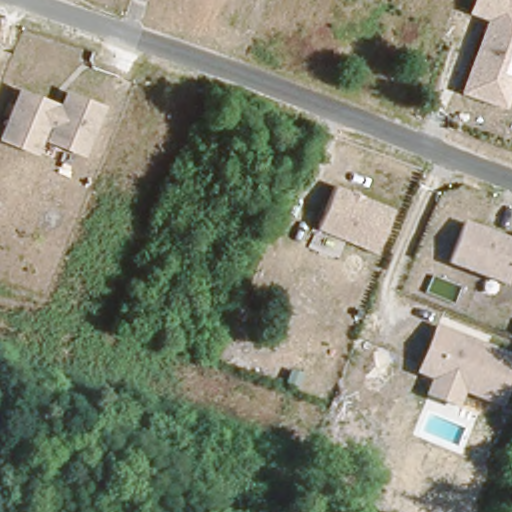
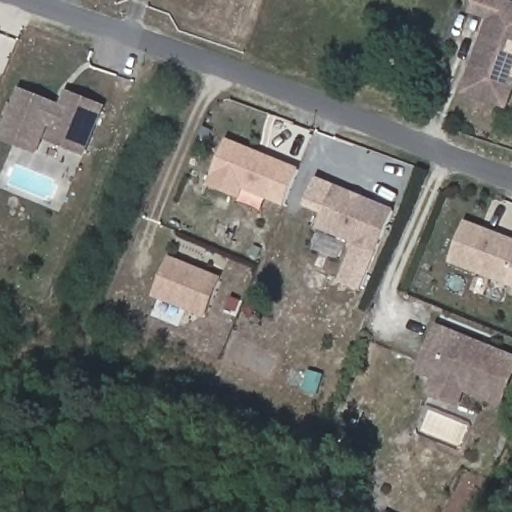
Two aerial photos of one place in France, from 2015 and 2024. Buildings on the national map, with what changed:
unchanged [(511,0),(512,0),(512,92),(506,109),(460,94),(486,18),(467,11),(472,0),(511,0)]
unchanged [(58,101),(65,88),(105,105),(83,157),(42,140),(35,157),(0,142),(0,130),(17,85),(58,101)]
new [(285,206),(243,190),(240,200),(207,185),(226,139),(300,169),(285,206)]
unchanged [(333,185),(393,208),(376,254),(315,228),(333,185)]
unchanged [(466,220),(512,238),(512,275),(508,286),(450,263),(466,220)]
new [(205,320),(152,298),(170,256),(221,277),(205,320)]
new [(512,276),(512,288),(508,286),(512,276)]
unchanged [(512,354),(512,384),(503,408),(466,394),(460,410),(425,396),(433,378),(417,372),(437,323),(512,354)]

